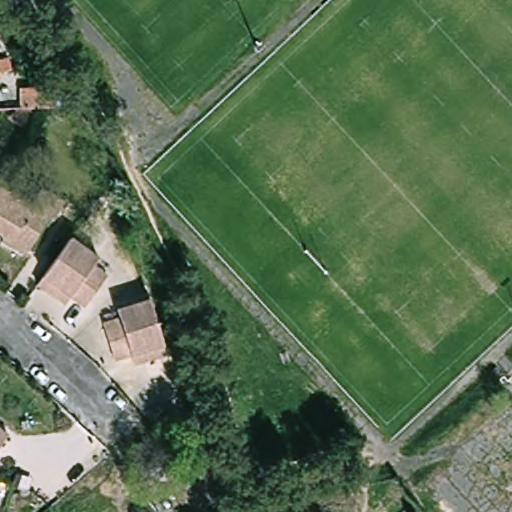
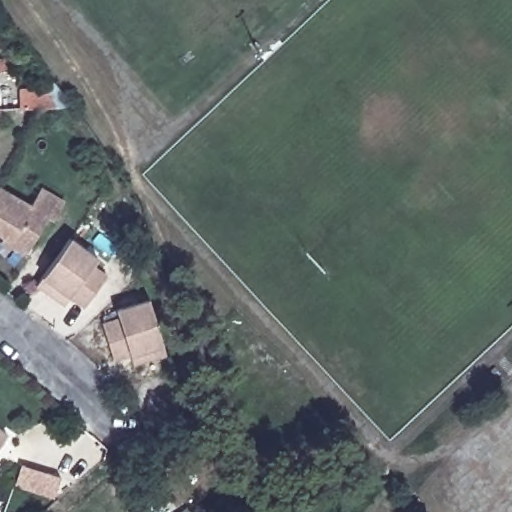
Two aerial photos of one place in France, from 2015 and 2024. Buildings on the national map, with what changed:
unchanged [(30,87),(42,107),(21,108),(10,89),(30,87)]
unchanged [(11,234),(0,227),(0,185),(1,184),(35,205),(45,187),(69,201),(57,221),(50,217),(33,245),(28,253),(7,240),(11,234)]
unchanged [(77,241),(85,249),(102,263),(97,270),(110,282),(85,311),(72,300),(70,298),(69,303),(65,308),(39,286),(45,277),(77,241)]
unchanged [(129,368),(128,368),(126,358),(109,363),(99,327),(116,322),(113,315),(147,305),(147,309),(158,350),(162,359),(129,368)]
unchanged [(0,450),(0,429),(10,436),(0,450)]
new [(19,466),(57,477),(52,498),(13,487),(19,466)]

